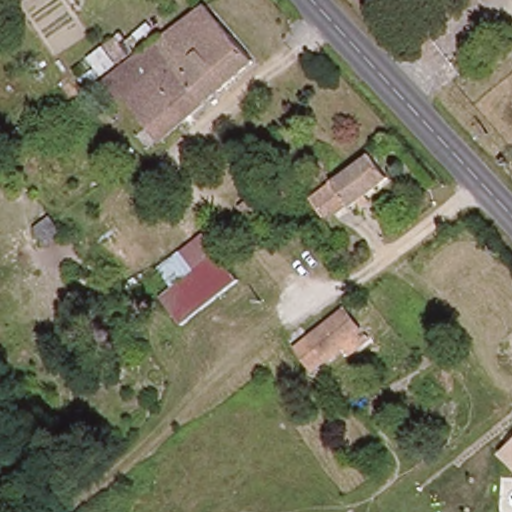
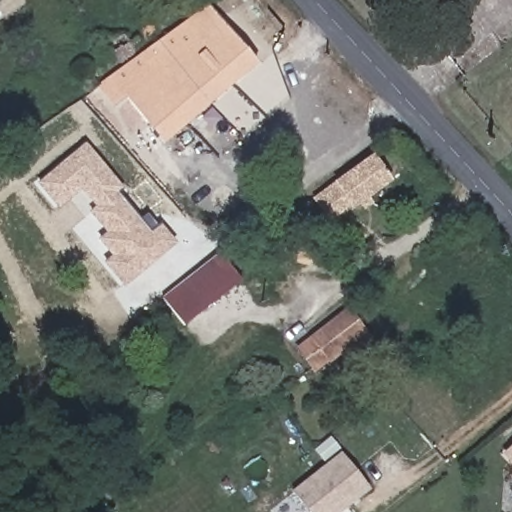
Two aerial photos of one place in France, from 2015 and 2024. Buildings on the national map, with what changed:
unchanged [(198,11),(244,69),(153,142),(122,104),(132,96),(113,72),(198,11)]
new [(124,286),(103,262),(111,255),(97,239),(106,233),(88,213),(95,207),(82,190),(58,209),(37,182),(85,142),(123,188),(118,192),(151,231),(161,223),(177,243),(124,286)]
unchanged [(388,180),(351,206),(336,185),(373,159),(388,180)]
unchanged [(143,273),(201,229),(222,257),(164,300),(143,273)]
unchanged [(222,257),(240,282),(182,325),(164,300),(222,257)]
unchanged [(360,337),(324,365),(306,342),(342,314),(360,337)]
new [(372,489),(343,512),(308,512),(292,490),(326,463),(315,449),(332,436),(372,489)]
unchanged [(512,447),(512,465),(503,455),(512,447)]

